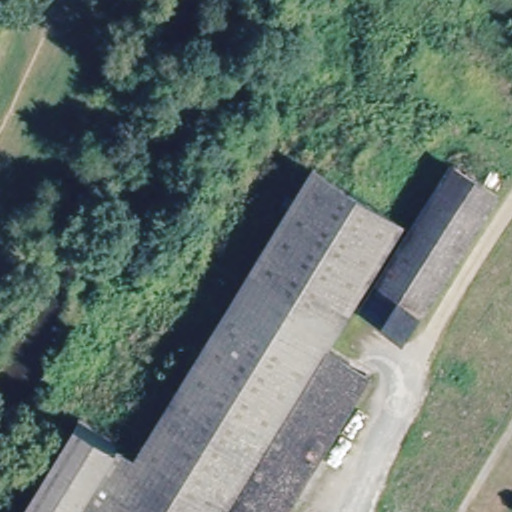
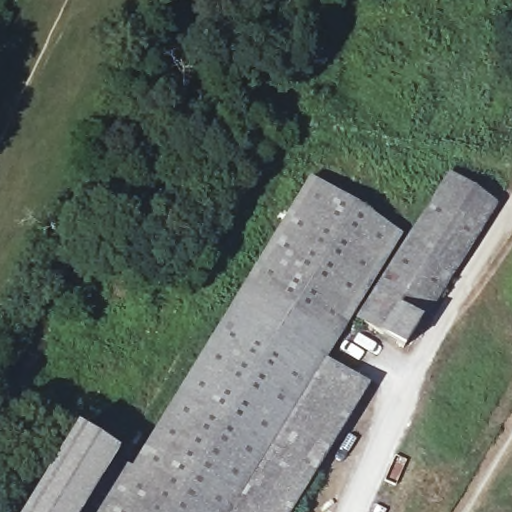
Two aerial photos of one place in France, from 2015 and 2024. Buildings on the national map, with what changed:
unchanged [(307,178),(335,197),(249,269),(307,178)]
unchanged [(398,236),(379,269),(388,275),(446,179),(489,204),(404,345),(360,320),(379,289),(369,283),(324,360),(367,387),(291,512),(72,512),(103,456),(125,469),(173,394),(249,269),(335,197),(398,236)]
unchanged [(74,438),(84,444),(103,456),(72,512),(28,512),(74,438)]

